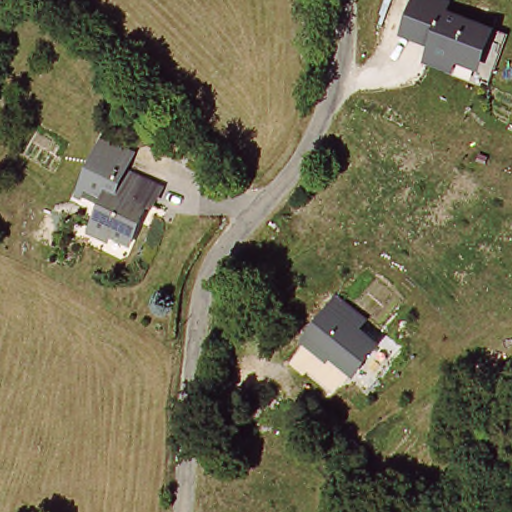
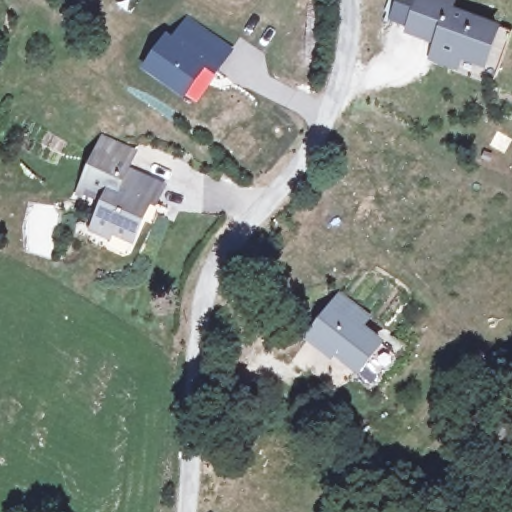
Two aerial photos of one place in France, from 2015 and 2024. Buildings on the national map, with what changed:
unchanged [(468,14),(512,31),(512,35),(499,69),(452,51),(455,47),(438,40),(425,35),(438,0),(459,0),(471,5),(468,14)]
new [(166,27),(171,32),(182,13),(230,47),(215,74),(205,66),(182,96),(140,65),(166,27)]
unchanged [(99,202),(74,191),(98,136),(127,148),(120,166),(157,182),(150,200),(145,197),(128,237),(91,221),(99,202)]
unchanged [(360,368),(330,342),(326,346),(311,334),(335,302),(380,341),(360,368)]

